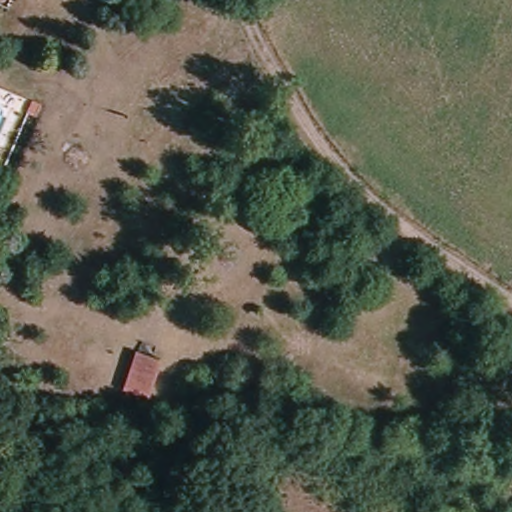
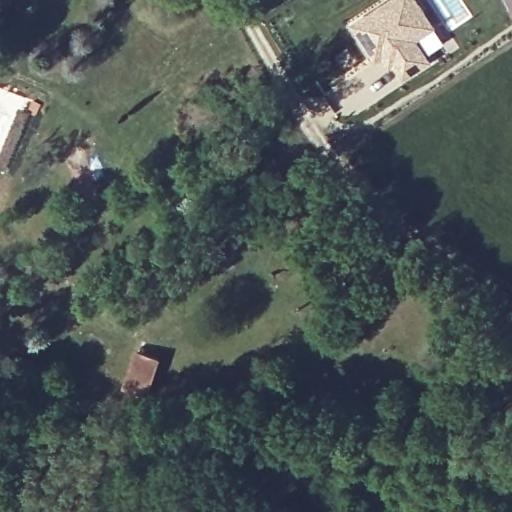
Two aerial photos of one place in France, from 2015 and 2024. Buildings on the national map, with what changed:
new [(376,59),(352,23),(388,0),(416,0),(423,11),(433,25),(419,34),(414,38),(429,60),(403,77),(394,63),(389,65),(382,55),(376,59)]
unchanged [(157,356),(145,394),(123,389),(136,349),(157,356)]

